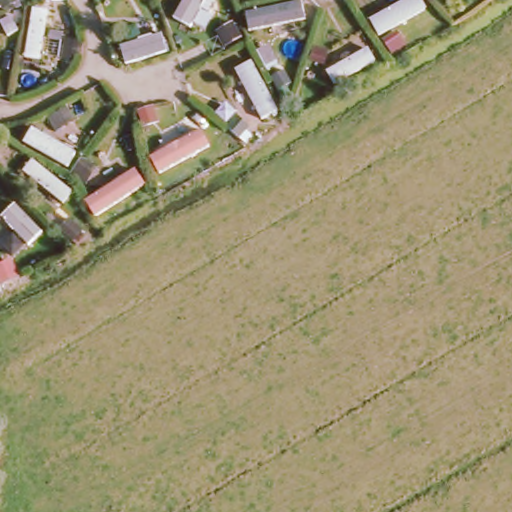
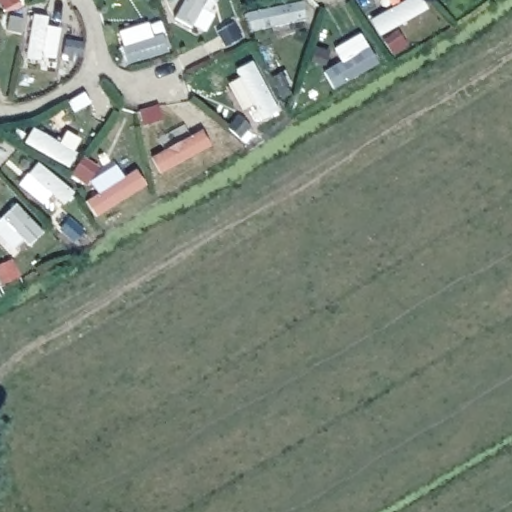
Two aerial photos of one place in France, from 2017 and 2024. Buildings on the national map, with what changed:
unchanged [(154,160),(202,130),(212,147),(162,173),(154,160)]

